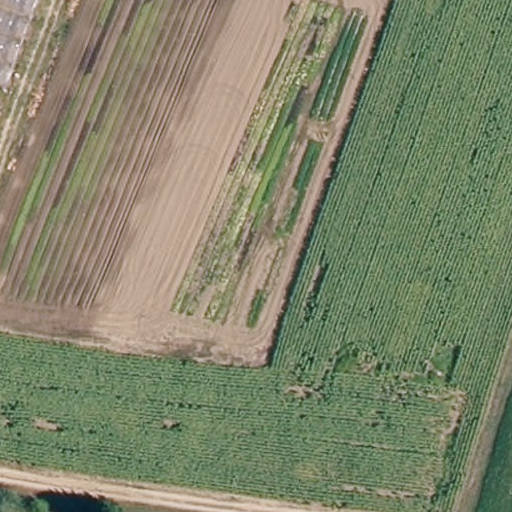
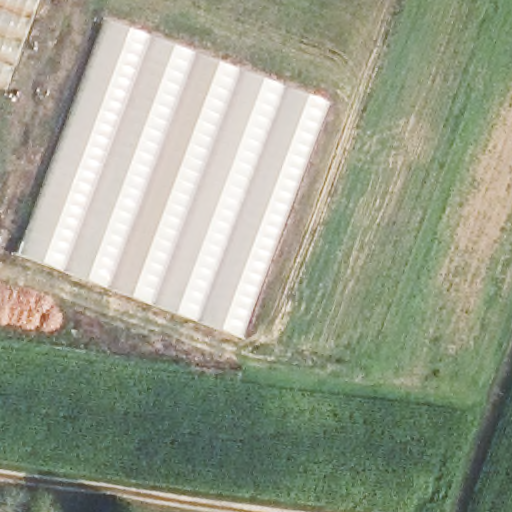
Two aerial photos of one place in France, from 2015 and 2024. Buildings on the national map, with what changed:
unchanged [(0,0),(42,0),(0,114),(0,0)]
new [(326,105),(239,338),(12,255),(97,20),(326,105)]

